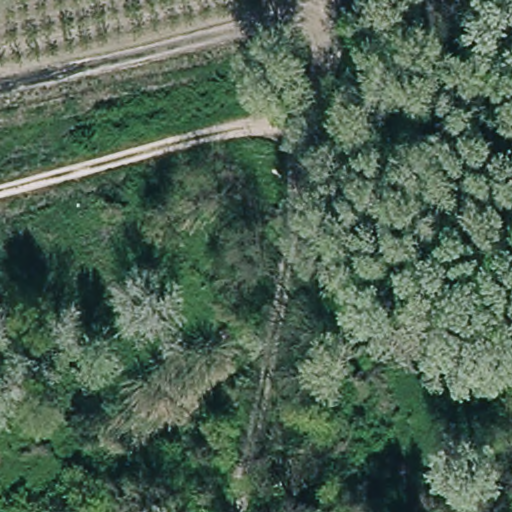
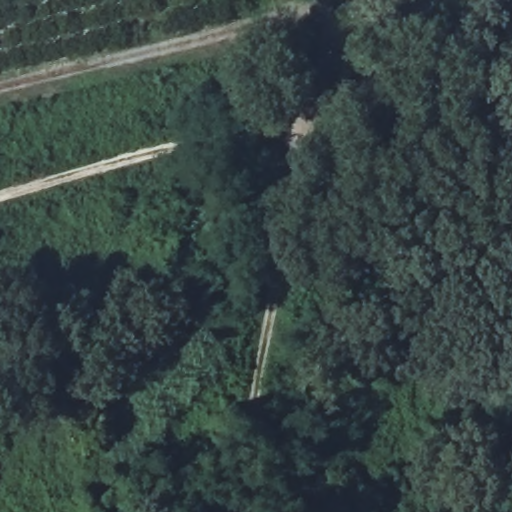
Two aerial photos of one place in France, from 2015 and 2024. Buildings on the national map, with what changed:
[]

